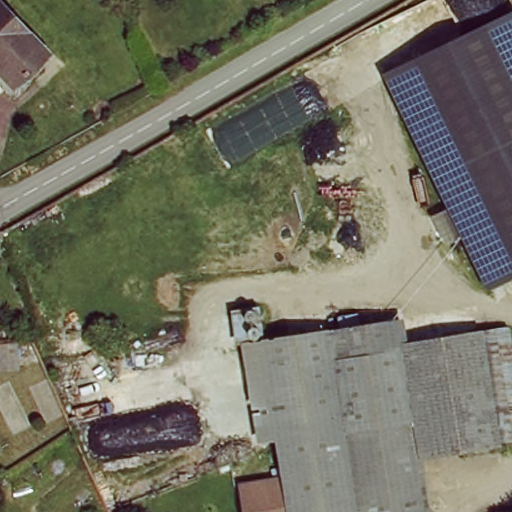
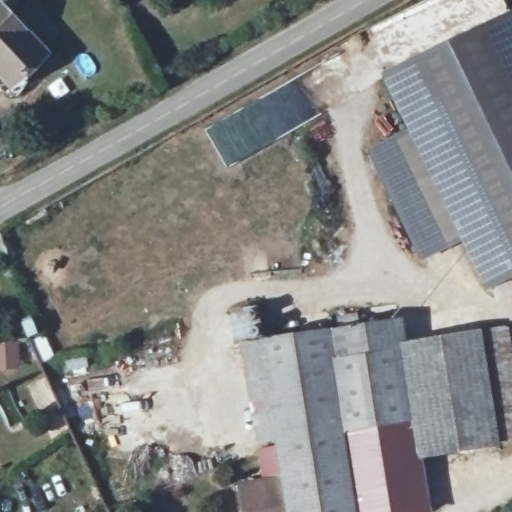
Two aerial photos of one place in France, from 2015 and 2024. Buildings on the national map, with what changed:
unchanged [(15,94),(0,76),(0,7),(49,64),(15,94)]
unchanged [(460,223),(381,69),(415,51),(501,8),(512,30),(512,288),(511,289),(497,297),(460,223)]
new [(460,223),(467,239),(420,261),(367,150),(412,130),(460,223)]
unchanged [(256,376),(253,344),(262,342),(398,319),(401,340),(266,366),(267,375),(256,376)]
unchanged [(512,333),(512,442),(497,444),(483,337),(512,333)]
unchanged [(416,455),(414,440),(404,358),(403,348),(483,337),(497,444),(416,455)]
unchanged [(283,473),(279,450),(267,375),(266,366),(401,340),(403,348),(404,358),(414,440),(416,455),(424,512),(247,512),(243,483),(283,473)]

